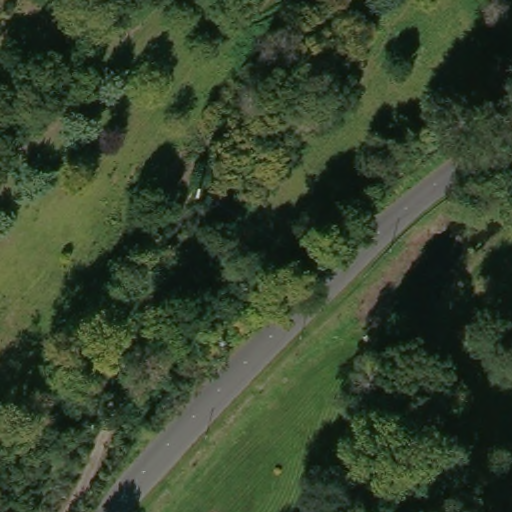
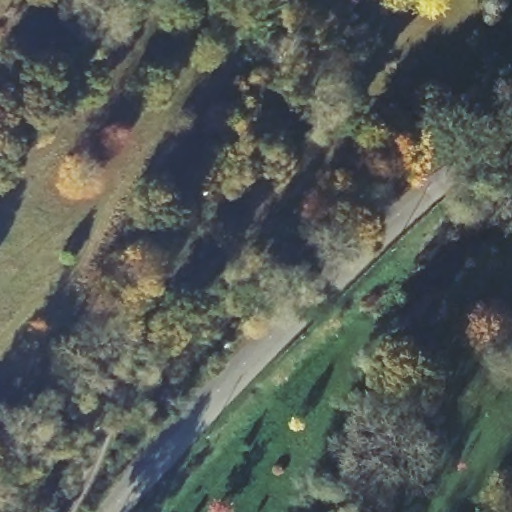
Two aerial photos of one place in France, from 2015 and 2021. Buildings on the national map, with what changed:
unchanged [(293,6),(283,0),(298,0),(293,6)]
unchanged [(370,3),(365,0),(371,0),(370,3)]

